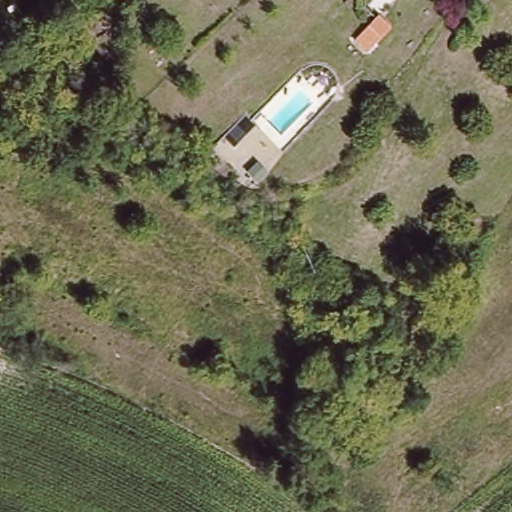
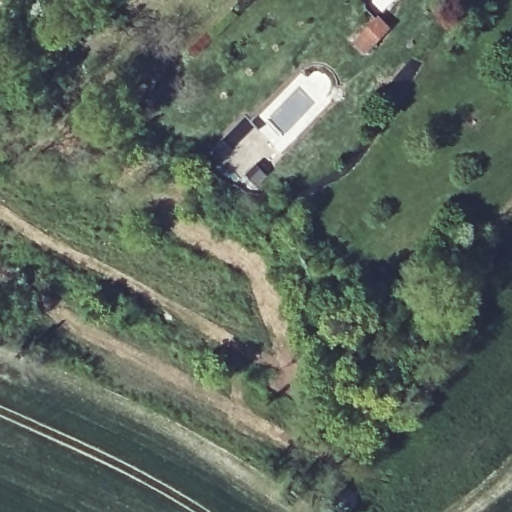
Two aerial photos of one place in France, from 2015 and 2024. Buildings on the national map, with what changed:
unchanged [(397,22),(382,50),(359,37),(376,11),(397,22)]

